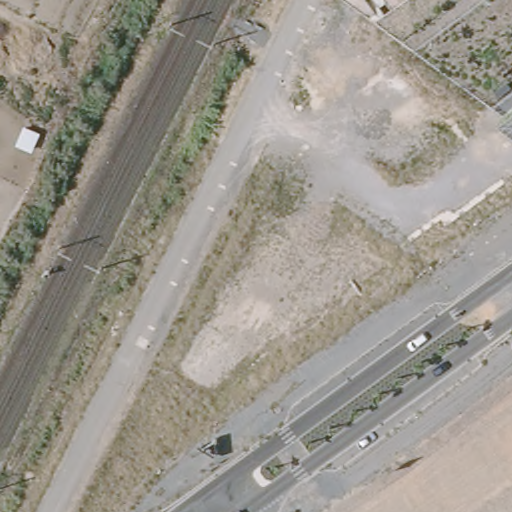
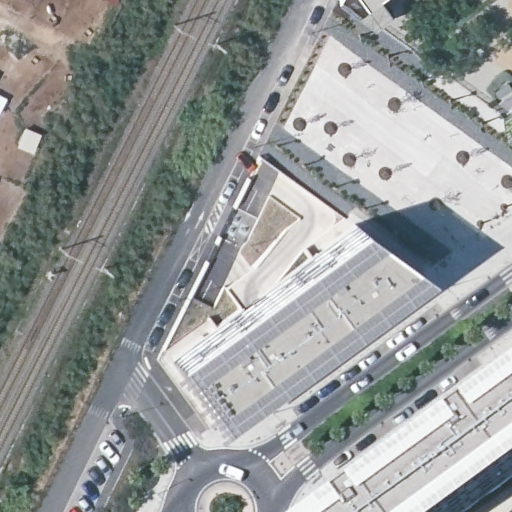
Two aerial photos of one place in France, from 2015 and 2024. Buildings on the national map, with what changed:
unchanged [(348,0),(402,0),(375,19),(348,0)]
unchanged [(512,113),(512,122),(506,117),(512,113)]
new [(353,224),(421,274),(216,423),(169,358),(353,224)]
new [(512,481),(469,512),(332,512),(512,382),(512,481)]

